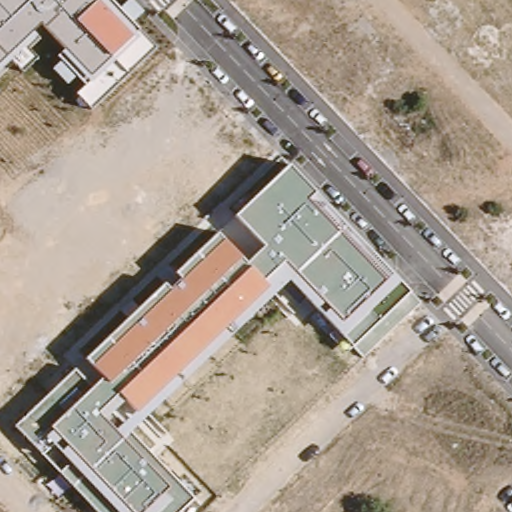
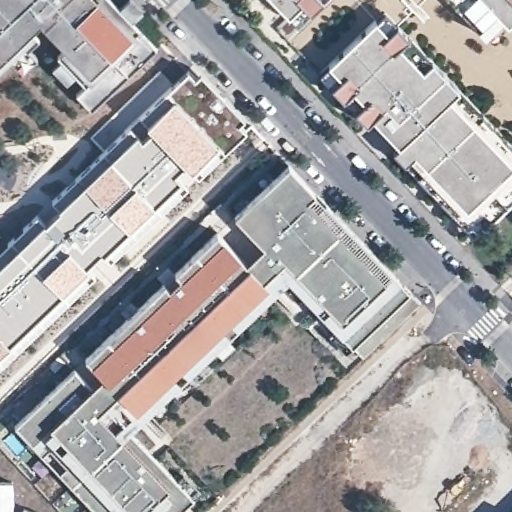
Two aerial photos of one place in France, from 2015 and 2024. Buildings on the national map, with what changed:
unchanged [(119,9),(129,0),(132,0),(142,11),(132,21),(156,47),(91,109),(77,94),(86,86),(77,76),(67,84),(53,69),(61,61),(57,57),(63,50),(39,23),(32,31),(38,37),(27,48),(35,57),(21,71),(10,60),(0,69),(0,0),(110,0),(119,9)]
new [(274,0),(322,0),(324,3),(312,13),(303,4),(290,16),(274,0)]
new [(504,19),(486,36),(481,30),(460,10),(451,0),(512,0),(512,23),(510,25),(504,19)]
new [(480,223),(474,231),(408,158),(405,162),(394,150),(402,144),(374,116),(367,122),(334,86),(321,76),(331,63),(374,22),(384,12),(396,25),(408,35),(432,62),(460,90),(512,145),(512,198),(482,225),(480,223)]
new [(160,70),(172,84),(168,88),(131,124),(102,151),(90,137),(160,70)]
new [(174,95),(215,137),(227,150),(196,179),(148,126),(145,122),(174,95)]
new [(36,218),(39,222),(57,206),(52,200),(102,151),(131,124),(139,133),(148,126),(196,179),(188,186),(160,210),(109,262),(102,255),(89,269),(93,273),(27,337),(0,360),(0,250),(36,218)]
unchanged [(92,387),(102,378),(86,360),(165,284),(171,288),(181,279),(176,273),(218,233),(246,263),(264,246),(235,216),(289,164),(315,192),(399,281),(408,292),(419,303),(364,357),(353,347),(342,335),(289,281),(130,432),(193,498),(179,512),(98,512),(16,426),(75,369),(92,387)]

